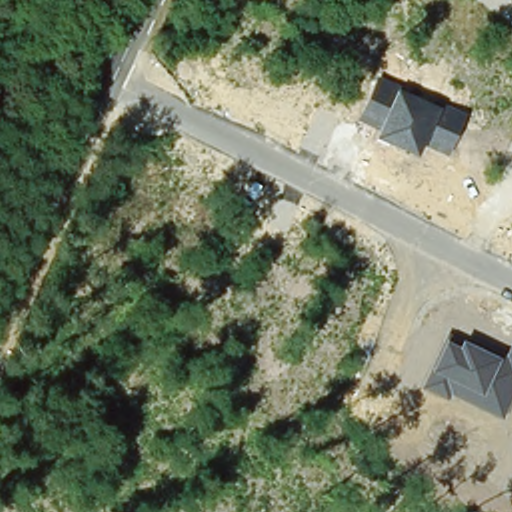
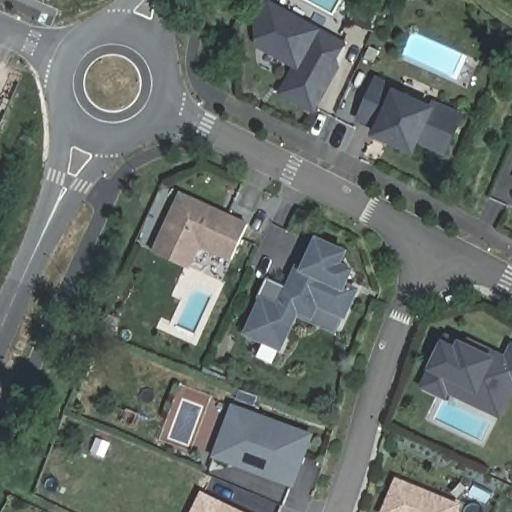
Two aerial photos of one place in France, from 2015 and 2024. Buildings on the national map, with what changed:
new [(288,61),(259,46),(255,31),(270,4),(343,44),(336,59),(338,66),(314,110),(282,93),(297,66),(303,55),(297,66),(288,61)]
new [(362,65),(367,54),(376,58),(371,69),(362,65)]
unchanged [(394,88),(438,105),(466,113),(449,155),(421,145),(418,155),(373,137),(375,131),(356,120),(377,76),(394,88)]
new [(248,225),(233,259),(200,245),(190,269),(155,253),(181,194),(248,225)]
new [(258,298),(267,277),(289,288),(295,275),(299,267),(305,270),(318,240),(346,253),(340,265),(352,270),(344,287),(346,285),(357,290),(356,293),(345,316),(318,304),(312,316),(298,310),(281,349),(247,333),(262,301),(258,298)]
unchanged [(447,400),(421,388),(429,370),(430,372),(443,341),(457,347),(459,339),(497,358),(503,361),(512,342),(512,399),(502,418),(450,396),(447,400)]
new [(216,456),(234,407),(311,436),(304,457),(306,458),(296,486),(253,470),(242,466),(216,456)]
new [(398,481),(459,505),(456,512),(385,512),(398,481)]
new [(221,503),(240,512),(217,512),(221,503)]

